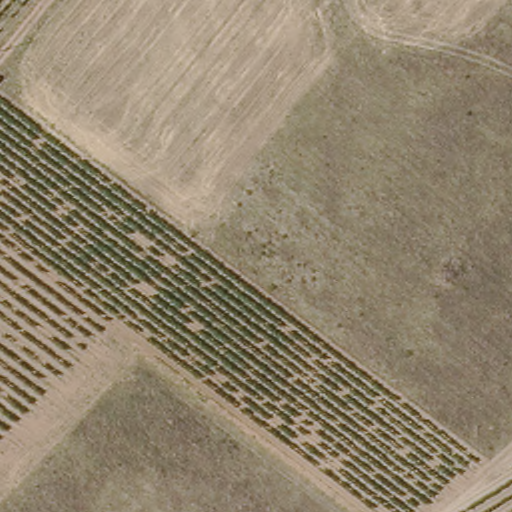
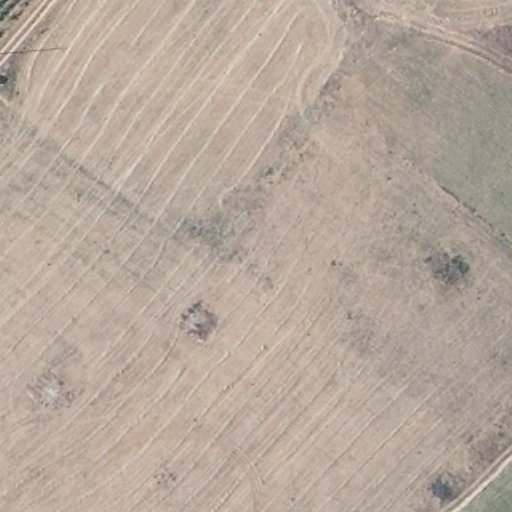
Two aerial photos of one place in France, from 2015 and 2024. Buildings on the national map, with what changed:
[]

